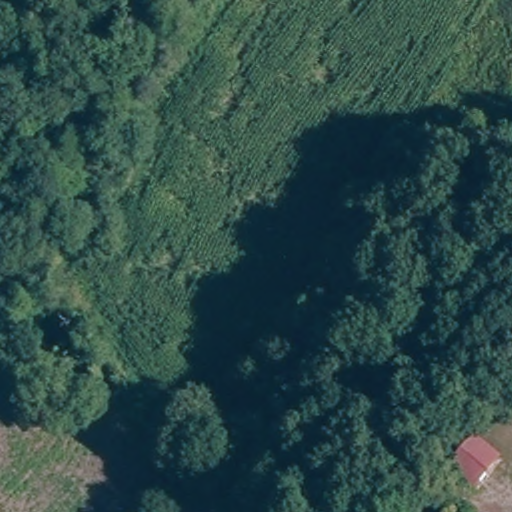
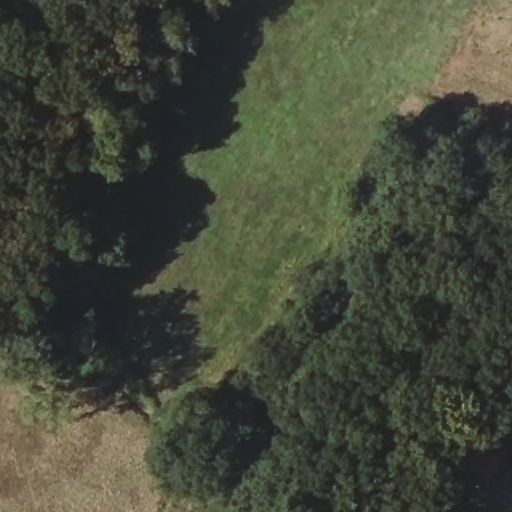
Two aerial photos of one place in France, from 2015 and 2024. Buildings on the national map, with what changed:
unchanged [(507,457),(481,491),(450,468),(480,436),(507,457)]

